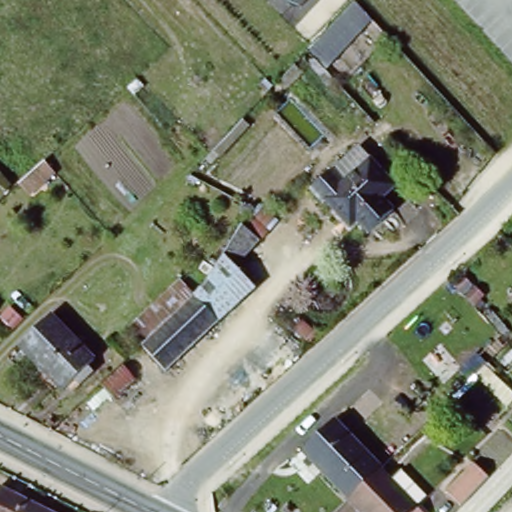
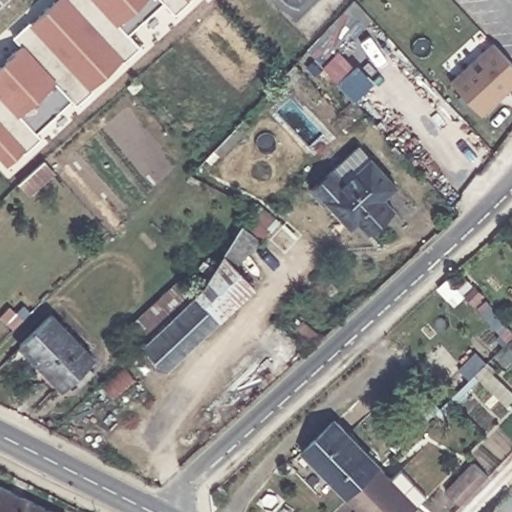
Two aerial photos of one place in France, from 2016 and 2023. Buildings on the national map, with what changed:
new [(12,36),(29,21),(31,24),(57,0),(191,0),(175,15),(163,2),(130,36),(140,48),(76,107),(70,100),(36,133),(40,139),(8,167),(0,158),(0,66),(21,47),(12,36)]
unchanged [(371,21),(328,65),(311,47),(352,4),(371,21)]
new [(493,44),(512,64),(512,86),(481,115),(451,83),(493,44)]
unchanged [(350,214),(341,221),(313,192),(335,172),(347,186),(373,161),(398,187),(385,199),(397,213),(371,237),(361,227),(350,214)]
new [(24,182),(46,162),(56,173),(32,195),(22,184),(24,182)]
unchanged [(128,328),(180,280),(193,298),(240,226),(260,204),(280,225),(260,247),(244,276),(260,292),(167,379),(128,328)]
unchanged [(96,366),(62,402),(16,352),(51,318),(96,366)]
new [(485,366),(512,391),(512,399),(506,406),(475,375),(485,366)]
unchanged [(300,449),(330,420),(376,467),(344,498),(342,500),(316,472),(296,452),(300,449)]
unchanged [(455,485),(482,457),(497,470),(470,499),(455,485)]
unchanged [(376,467),(413,504),(421,512),(358,512),(344,498),(376,467)]
unchanged [(0,512),(0,496),(3,490),(45,512),(0,512)]

